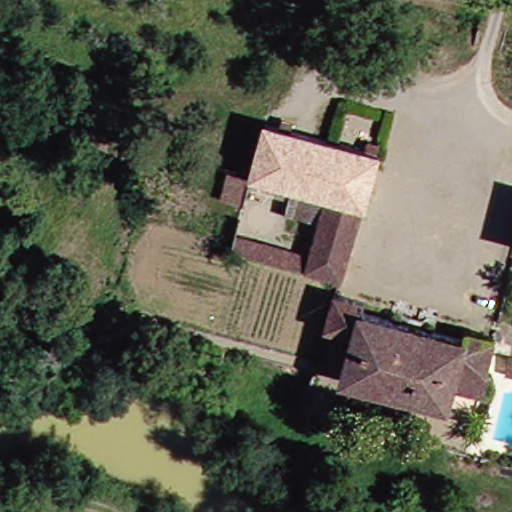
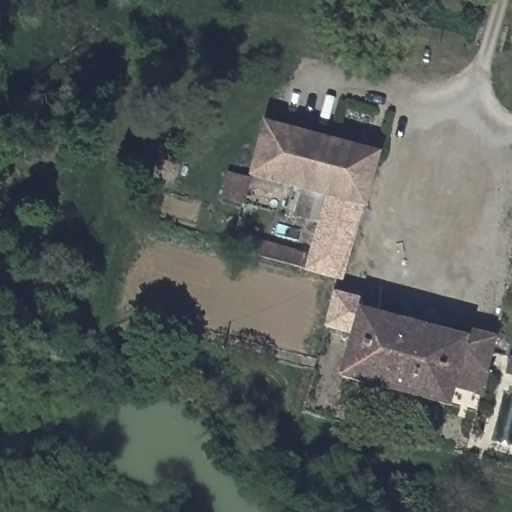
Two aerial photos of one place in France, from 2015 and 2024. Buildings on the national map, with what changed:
unchanged [(377,152),(363,207),(360,207),(341,282),(229,254),(233,237),(309,256),(324,200),(275,187),(270,206),(243,198),(248,180),(263,123),(377,152)]
unchanged [(508,244),(512,228),(512,245),(511,245),(508,244)]
unchanged [(446,390),(441,408),(339,382),(349,341),(322,332),(331,298),(358,305),(356,313),(457,339),(461,328),(490,336),(480,376),(474,397),(446,390)]
unchanged [(512,369),(512,373),(511,372),(512,369)]

